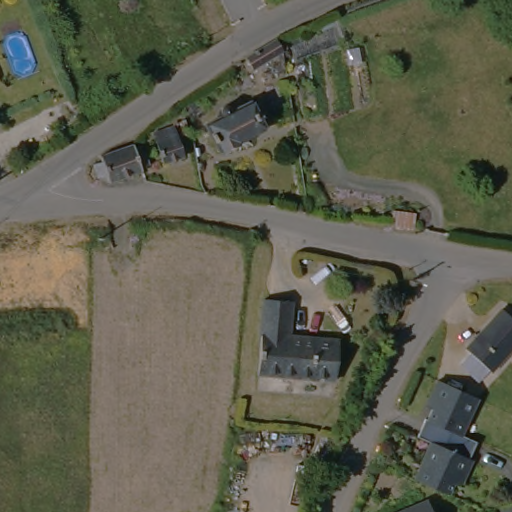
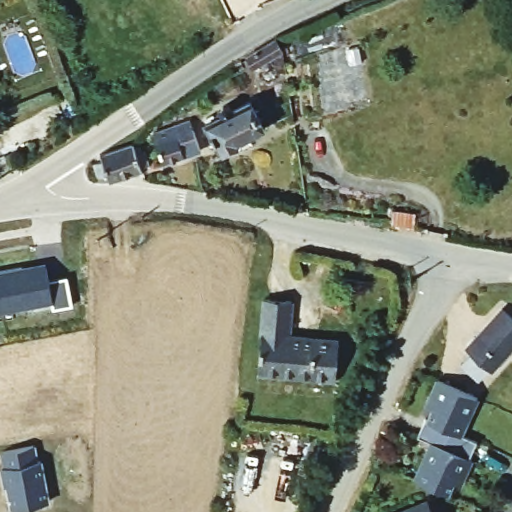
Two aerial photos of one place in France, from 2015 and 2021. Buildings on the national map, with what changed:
unchanged [(277,54),(248,69),(241,57),(271,41),(277,54)]
unchanged [(206,124),(221,114),(219,110),(221,105),(227,101),(232,101),(236,105),(249,97),(266,124),(223,149),(206,124)]
unchanged [(104,149),(103,145),(118,141),(133,136),(136,135),(138,138),(143,136),(146,142),(148,141),(149,143),(158,138),(176,128),(181,138),(171,144),(181,161),(163,170),(158,173),(154,165),(149,157),(145,158),(146,161),(144,162),(143,162),(131,166),(112,172),(110,166),(103,168),(101,163),(98,154),(106,151),(104,149)]
new [(46,266),(47,273),(49,283),(67,280),(73,309),(53,313),(52,306),(0,316),(0,274),(22,270),(46,266)]
unchanged [(291,300),(288,336),(337,339),(334,378),(257,373),(262,298),(291,300)]
unchanged [(498,309),(512,322),(512,345),(489,371),(464,349),(498,309)]
unchanged [(477,396),(462,434),(478,441),(471,458),(474,459),(466,478),(460,475),(451,495),(418,481),(433,444),(419,438),(426,420),(428,420),(435,401),(428,398),(436,380),(477,396)]
new [(5,469),(2,453),(33,447),(36,463),(41,463),(48,504),(11,511),(6,488),(4,489),(1,471),(5,469)]
unchanged [(429,512),(400,512),(424,501),(429,512)]

